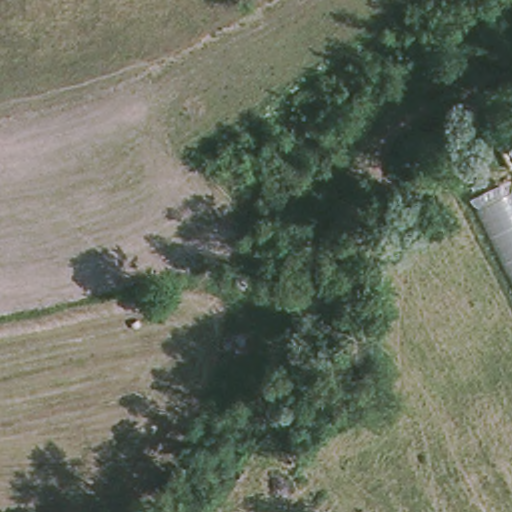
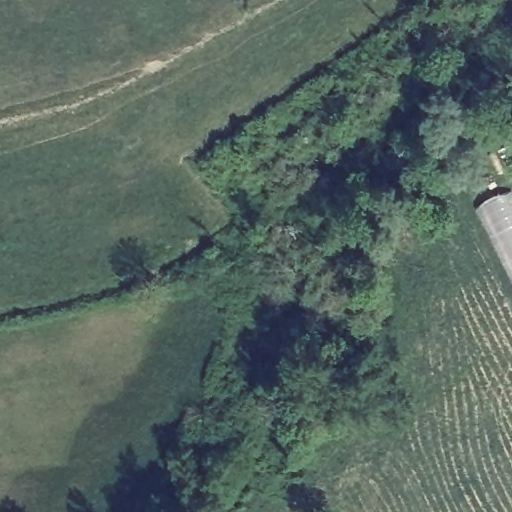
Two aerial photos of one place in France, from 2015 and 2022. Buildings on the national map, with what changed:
unchanged [(512,197),(512,273),(478,205),(509,191),(512,197)]

